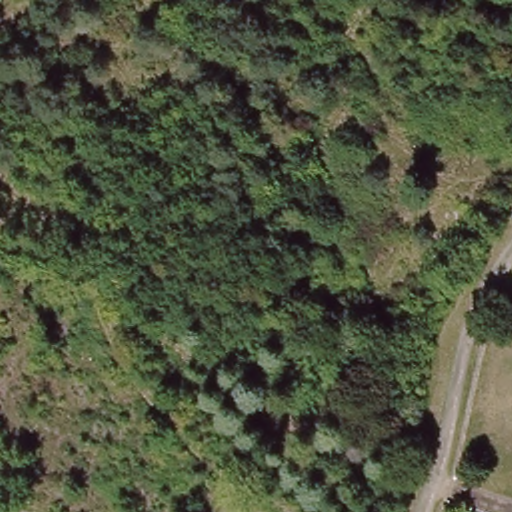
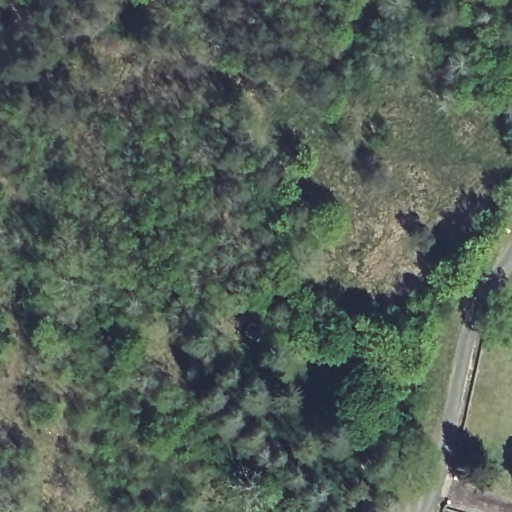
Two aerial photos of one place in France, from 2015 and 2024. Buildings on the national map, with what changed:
[]

